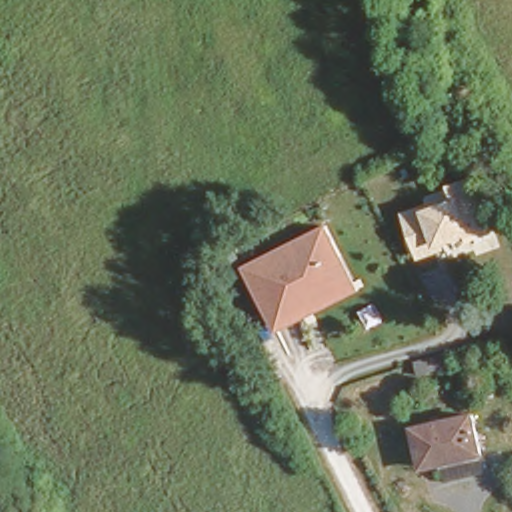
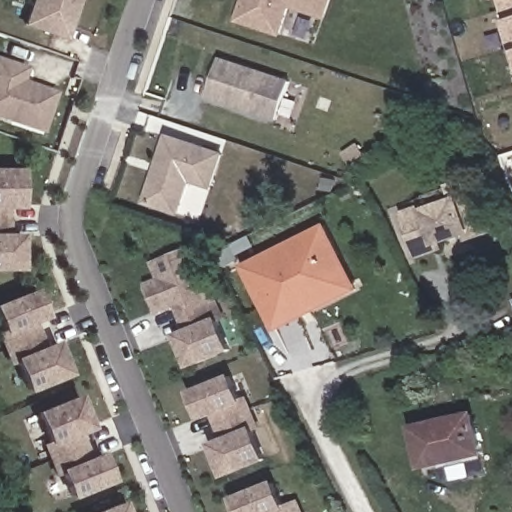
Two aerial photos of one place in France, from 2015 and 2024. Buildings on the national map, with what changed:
new [(22,24),(31,0),(82,0),(68,40),(22,24)]
new [(291,7),(281,36),(235,21),(241,0),(331,0),(324,19),(291,7)]
new [(512,46),(505,21),(504,23),(497,0),(512,0),(512,46)]
new [(44,133),(0,118),(0,56),(29,66),(24,79),(59,90),(44,133)]
new [(207,97),(219,56),(291,79),(277,121),(207,97)]
unchanged [(436,131),(441,143),(413,155),(407,142),(436,131)]
new [(162,134),(220,153),(211,190),(187,183),(177,216),(140,202),(162,134)]
demolished [(380,223),(365,192),(433,160),(448,192),(380,223)]
new [(22,168),(22,209),(11,209),(11,233),(23,233),(23,271),(0,271),(0,168),(22,168)]
new [(467,242),(465,235),(442,243),(444,250),(418,260),(400,211),(428,201),(430,206),(451,198),(447,184),(472,175),(492,232),(467,242)]
unchanged [(277,333),(242,263),(329,223),(363,292),(277,333)]
new [(185,328),(175,307),(157,314),(144,283),(157,277),(151,262),(195,244),(222,313),(217,317),(230,351),(188,367),(174,332),(185,328)]
new [(16,363),(11,365),(0,340),(0,334),(3,332),(0,325),(0,303),(36,288),(49,318),(38,323),(47,344),(57,340),(72,375),(28,393),(16,363)]
unchanged [(448,353),(451,362),(420,371),(417,360),(448,353)]
new [(230,373),(241,400),(247,396),(261,428),(255,432),(266,459),(223,477),(209,443),(221,438),(212,416),(200,421),(187,391),(230,373)]
new [(62,474),(56,477),(42,445),(48,442),(36,412),(80,394),(94,429),(85,433),(94,456),(103,452),(115,481),(72,499),(62,474)]
unchanged [(446,481),(441,460),(424,464),(413,426),(474,410),(483,449),(487,470),(446,481)]
new [(286,505),(298,500),(303,512),(237,512),(231,496),(275,479),(286,505)]
new [(128,512),(92,512),(122,499),(128,512)]

